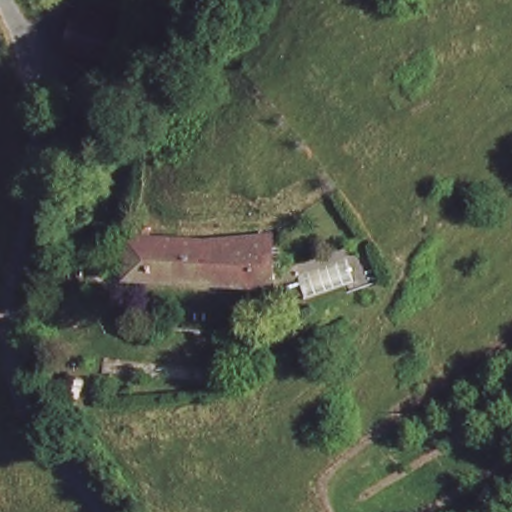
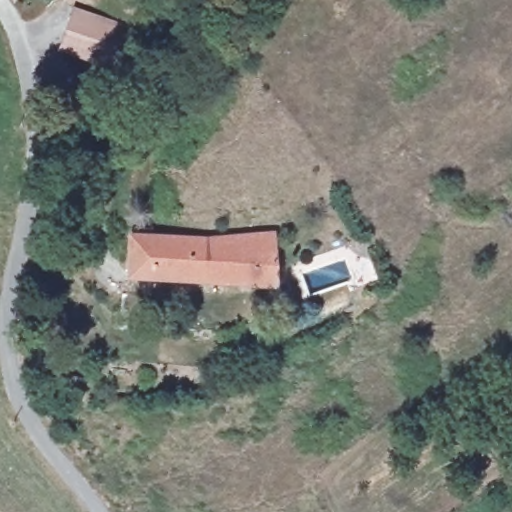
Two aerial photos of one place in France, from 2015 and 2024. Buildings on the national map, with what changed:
unchanged [(72,0),(134,0),(120,26),(72,0)]
new [(135,35),(117,70),(62,40),(80,5),(135,35)]
unchanged [(201,280),(129,276),(137,227),(208,234),(201,280)]
unchanged [(208,234),(250,237),(275,240),(269,283),(201,280),(208,234)]

